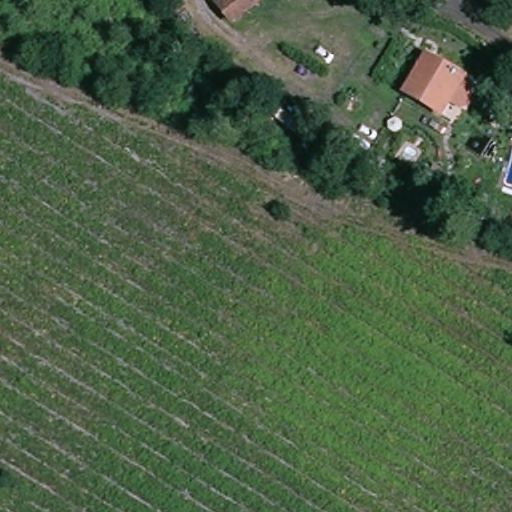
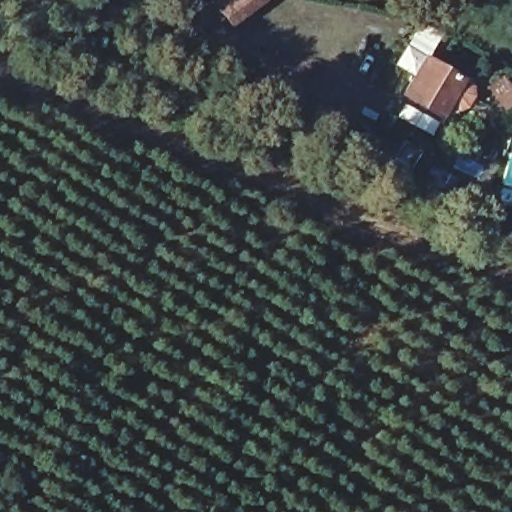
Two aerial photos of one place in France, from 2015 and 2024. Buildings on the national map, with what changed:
unchanged [(235,26),(214,0),(270,0),(235,26)]
unchanged [(443,117),(411,94),(434,55),(466,80),(443,117)]

